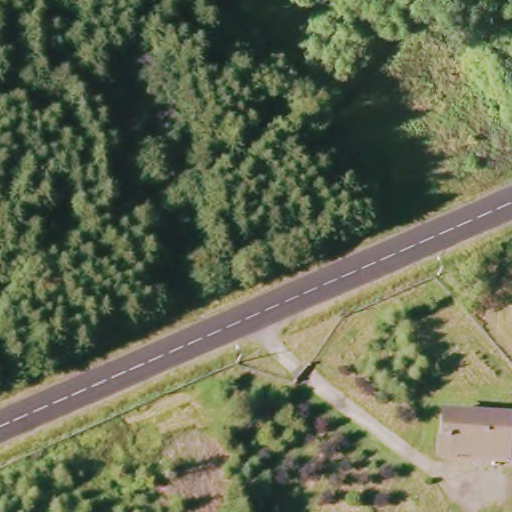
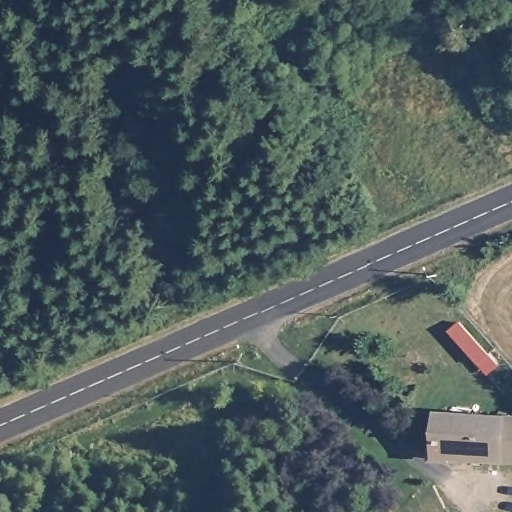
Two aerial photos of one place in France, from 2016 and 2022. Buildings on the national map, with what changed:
unchanged [(439,421),(512,424),(512,465),(438,462),(439,421)]

